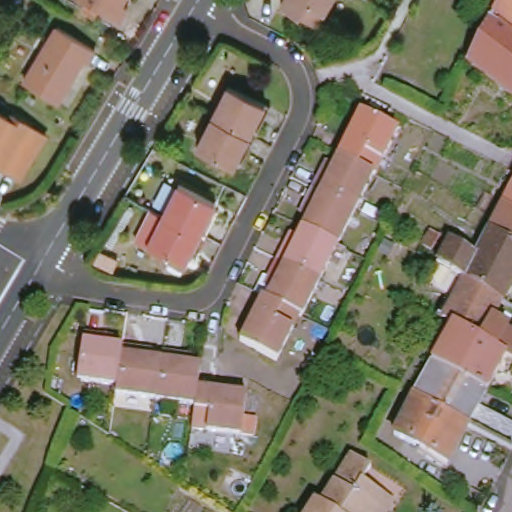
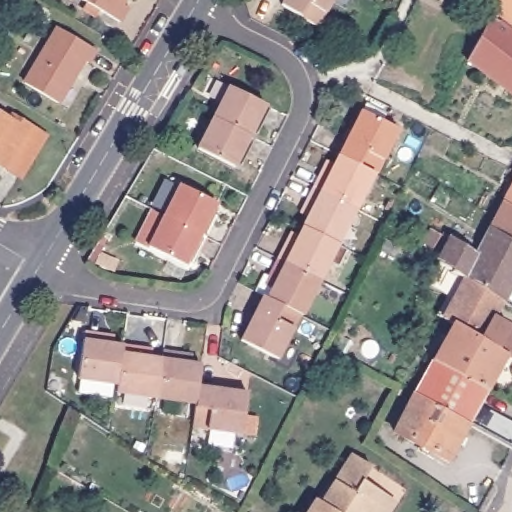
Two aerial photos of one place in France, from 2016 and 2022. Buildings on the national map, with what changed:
unchanged [(123,0),(122,2),(129,7),(120,22),(82,0),(123,0)]
unchanged [(283,7),(287,0),(335,0),(317,29),(283,7)]
unchanged [(512,0),(512,91),(473,61),(497,12),(503,0),(512,0)]
unchanged [(26,84),(59,27),(95,49),(88,62),(84,60),(58,102),(26,84)]
unchanged [(216,117),(232,85),(269,104),(253,136),(216,117)]
unchanged [(10,117),(12,115),(51,137),(25,179),(0,164),(0,112),(10,117)]
unchanged [(376,177),(342,160),(364,114),(400,132),(378,177),(376,177)]
unchanged [(253,136),(237,167),(200,147),(216,117),(253,136)]
unchanged [(317,192),(327,173),(334,176),(342,160),(376,177),(358,212),(317,192)]
unchanged [(168,216),(184,185),(220,202),(204,234),(168,216)]
unchanged [(305,231),(314,213),(308,209),(317,192),(358,212),(340,247),(305,231)]
unchanged [(512,194),(512,204),(508,202),(512,194)]
unchanged [(508,202),(512,204),(512,239),(494,227),(508,202)]
unchanged [(204,234),(188,265),(153,246),(168,216),(204,234)]
unchanged [(441,261),(453,239),(481,256),(494,227),(512,239),(512,294),(507,302),(471,279),(441,261)]
unchanged [(281,262),(290,244),(296,247),(305,231),(340,247),(322,283),(281,262)]
unchanged [(301,317),(269,302),(278,285),(272,281),(281,262),(322,283),(304,319),(301,317)]
unchanged [(457,326),(449,321),(471,279),(507,302),(496,325),(511,329),(512,330),(512,359),(509,357),(457,326)]
unchanged [(269,302),(301,317),(278,362),(242,343),(265,300),(269,302)]
unchanged [(437,361),(457,326),(509,357),(490,390),(437,361)]
unchanged [(109,348),(128,351),(124,390),(89,385),(83,384),(89,338),(109,340),(109,348)]
unchanged [(128,351),(149,353),(148,360),(169,362),(164,402),(123,397),(124,390),(128,351)]
unchanged [(169,362),(170,356),(190,357),(190,366),(208,367),(205,390),(202,407),(164,402),(169,362)]
unchanged [(437,361),(490,390),(483,403),(512,420),(512,445),(473,422),(420,393),(437,361)]
unchanged [(202,407),(205,390),(254,396),(250,436),(199,429),(202,407)]
unchanged [(473,422),(451,463),(432,454),(434,450),(399,431),(420,393),(473,422)]
unchanged [(322,502),(326,504),(358,457),(376,468),(368,480),(389,493),(376,512),(314,512),(322,502)]

